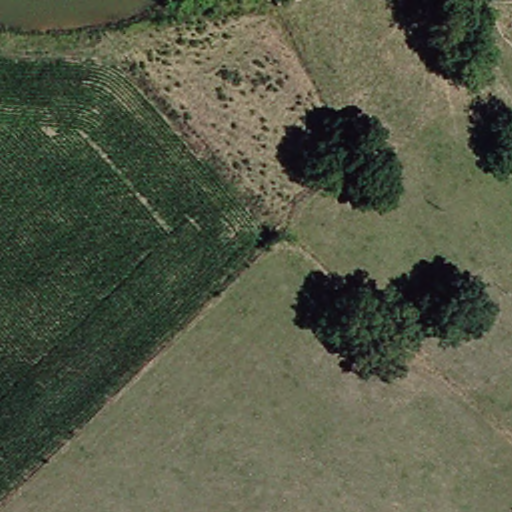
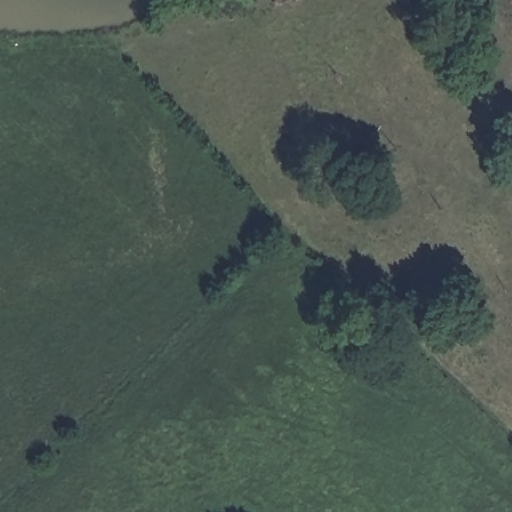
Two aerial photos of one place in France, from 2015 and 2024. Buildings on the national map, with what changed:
unchanged [(272,0),(301,0),(274,7),(272,0)]

